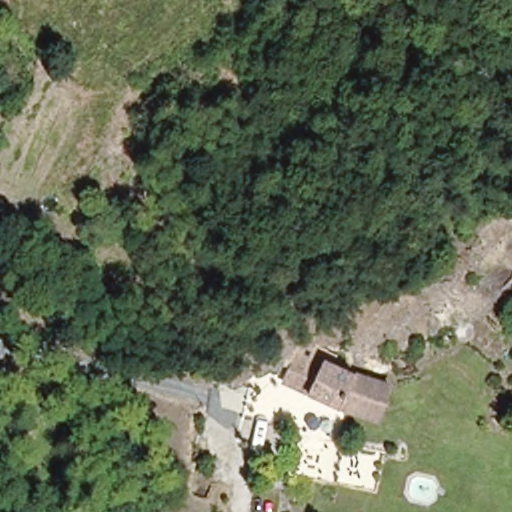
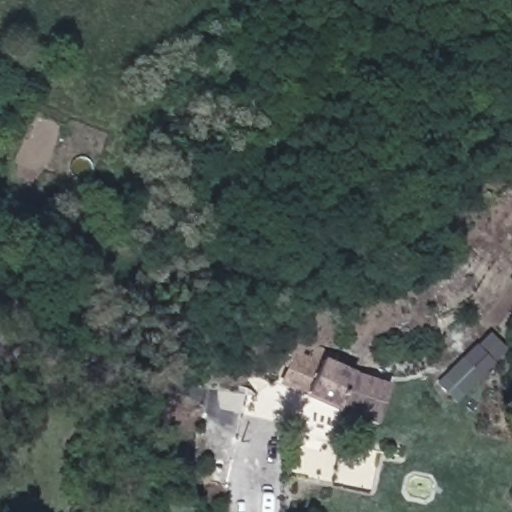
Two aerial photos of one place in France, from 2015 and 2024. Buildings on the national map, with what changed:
new [(493,331),(512,350),(458,403),(440,384),(493,331)]
unchanged [(295,351),(316,361),(319,357),(349,373),(336,404),(280,376),(284,370),(295,351)]
unchanged [(353,371),(391,382),(380,422),(340,410),(353,371)]

